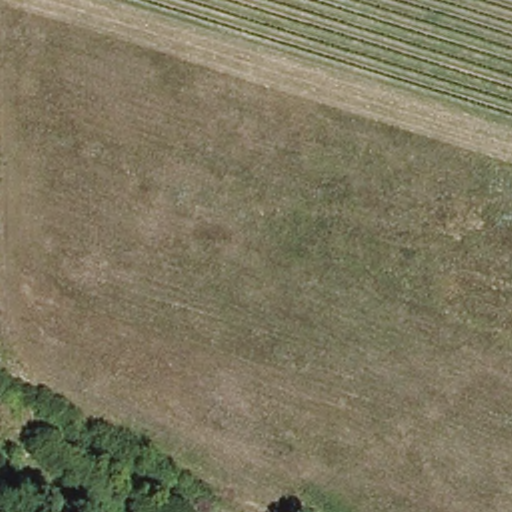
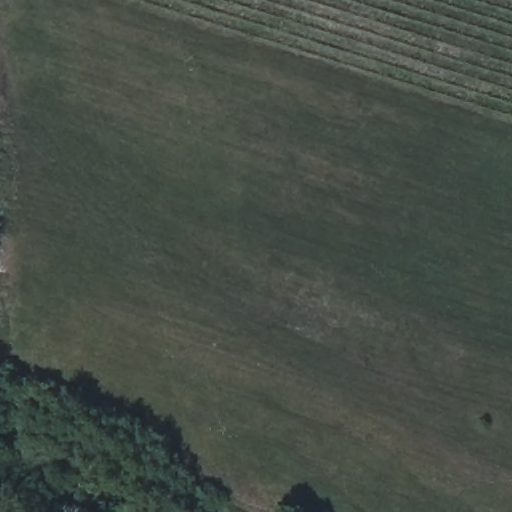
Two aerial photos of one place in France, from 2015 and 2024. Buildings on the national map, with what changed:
[]

